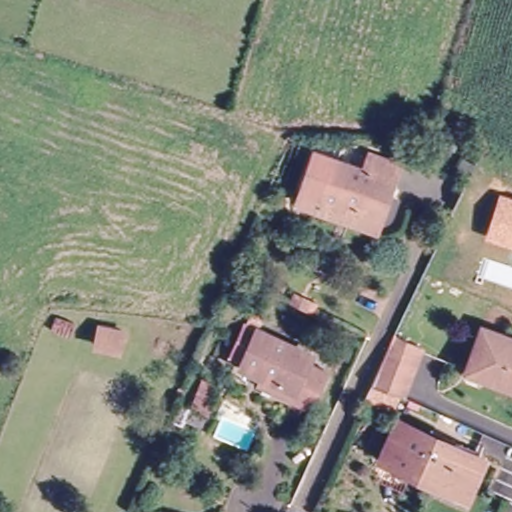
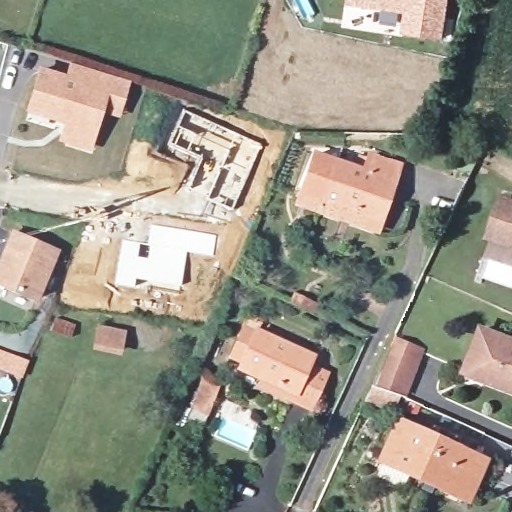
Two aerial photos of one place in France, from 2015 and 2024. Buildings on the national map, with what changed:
new [(403,14),(346,5),(347,0),(449,0),(443,41),(401,35),(403,14)]
new [(69,79),(73,64),(111,76),(111,79),(110,79),(127,84),(117,118),(100,112),(89,148),(69,142),(65,132),(68,120),(30,109),(42,71),(69,79)]
new [(231,211),(187,192),(201,158),(170,144),(184,111),(261,144),(231,211)]
unchanged [(295,197),(298,187),(317,145),(365,166),(371,154),(397,165),(373,219),(369,229),(295,197)]
unchanged [(512,198),(512,245),(485,237),(499,194),(512,198)]
new [(181,285),(135,279),(134,288),(115,285),(122,240),(149,244),(151,225),(216,235),(213,255),(187,252),(181,285)]
new [(56,254),(35,302),(0,286),(0,266),(13,235),(56,254)]
unchanged [(96,324),(126,329),(123,354),(92,349),(96,324)]
unchanged [(246,372),(224,361),(240,326),(295,351),(290,361),(309,370),(294,403),(276,394),(243,379),(246,372)]
unchanged [(468,375),(484,333),(512,343),(512,391),(468,375)]
unchanged [(370,402),(379,384),(398,344),(422,356),(405,394),(393,389),(384,408),(370,402)]
unchanged [(422,475),(419,482),(382,465),(399,428),(425,439),(427,433),(488,457),(485,464),(479,462),(466,493),(422,475)]

